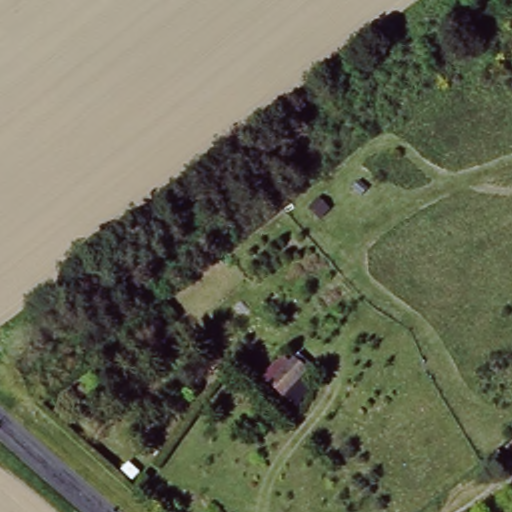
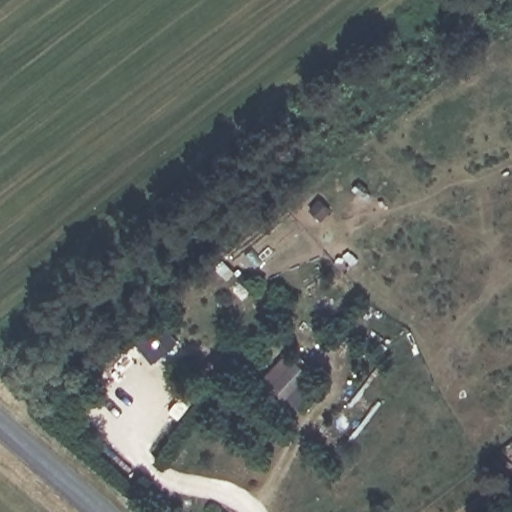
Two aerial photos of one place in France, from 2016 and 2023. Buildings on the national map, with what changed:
unchanged [(290,402),(269,382),(294,351),(316,372),(290,402)]

